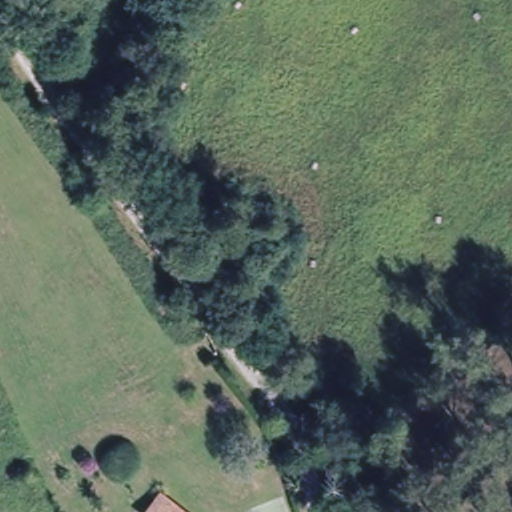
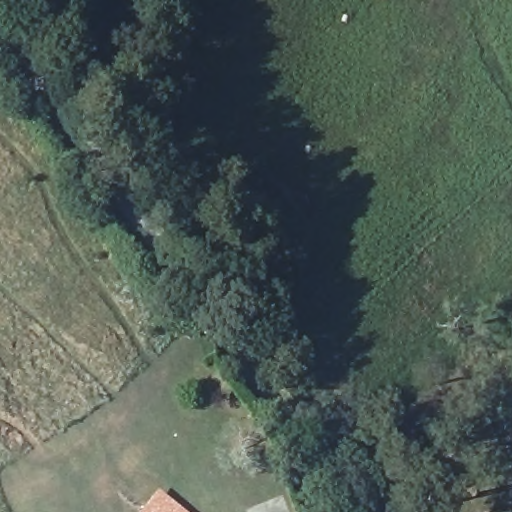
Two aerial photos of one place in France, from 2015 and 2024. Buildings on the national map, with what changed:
unchanged [(145,512),(144,511),(161,485),(194,512),(145,512)]

